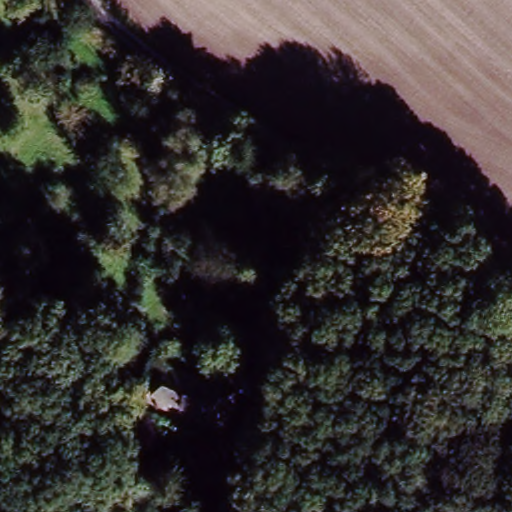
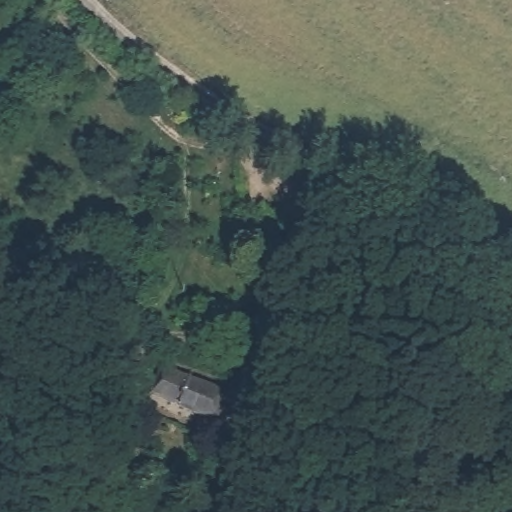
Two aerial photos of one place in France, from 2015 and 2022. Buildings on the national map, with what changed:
unchanged [(317,227),(290,219),(302,180),(330,190),(317,227)]
unchanged [(227,396),(217,423),(148,397),(159,370),(227,396)]

